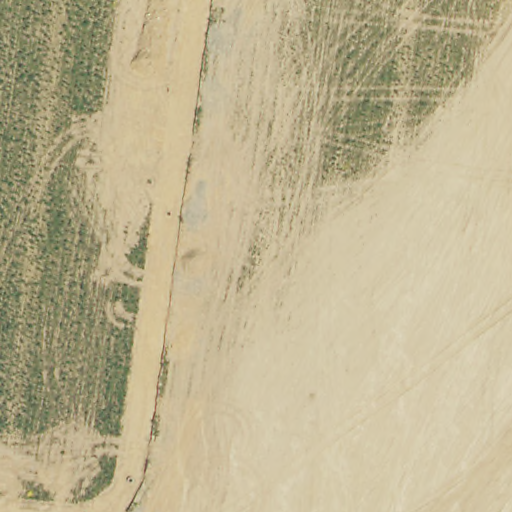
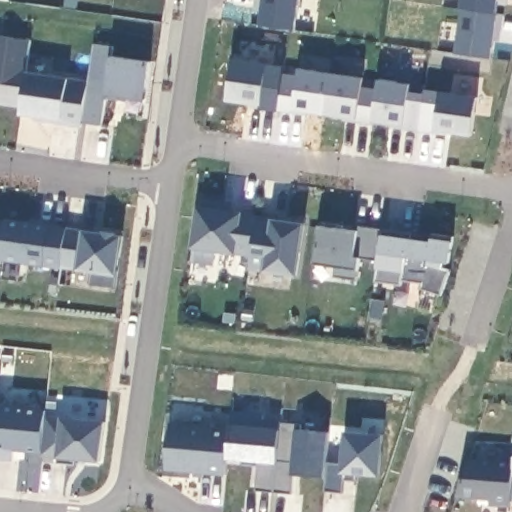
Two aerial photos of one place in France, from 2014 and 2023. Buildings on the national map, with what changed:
new [(498,14),(492,56),(456,53),(461,9),(498,14)]
new [(105,94),(101,124),(81,120),(81,126),(35,119),(36,116),(20,114),(20,108),(0,105),(0,37),(31,40),(26,72),(69,78),(88,80),(94,44),(111,47),(111,56),(151,61),(145,100),(105,94)]
new [(233,59),(267,64),(266,69),(298,74),(299,68),(364,78),(380,79),(412,85),(411,91),(424,94),(424,89),(439,90),(478,97),(473,137),(407,126),(375,121),(358,119),(293,109),(262,106),(228,101),(233,59)]
new [(286,222),(288,218),(306,221),(299,276),(292,275),(290,291),(246,285),(250,269),(251,255),(235,253),(215,250),(214,265),(192,262),(197,248),(194,247),(201,209),(201,200),(231,204),(231,213),(242,215),(258,217),(286,222)]
new [(116,287),(92,284),(96,272),(79,269),(61,269),(4,261),(0,260),(0,219),(4,220),(5,218),(83,230),(123,236),(116,275),(116,287)]
new [(318,225),(358,230),(360,226),(383,229),(383,235),(379,259),(360,256),(358,270),(357,280),(336,278),(340,267),(315,263),(318,225)]
new [(383,229),(412,235),(412,240),(431,242),(432,238),(435,238),(435,234),(453,237),(453,243),(449,264),(445,264),(444,269),(452,270),(442,295),(424,289),(425,283),(403,280),(403,284),(377,280),(383,269),(377,268),(383,235),(383,229)]
new [(99,462),(58,457),(41,456),(46,416),(61,417),(104,422),(99,462)]
new [(169,422),(231,428),(227,477),(168,471),(169,422)]
new [(328,463),(341,464),(345,432),(385,434),(382,477),(347,474),(345,492),(326,491),(328,463)]
new [(469,459),(512,462),(512,491),(511,508),(491,506),(491,499),(458,497),(469,459)]

